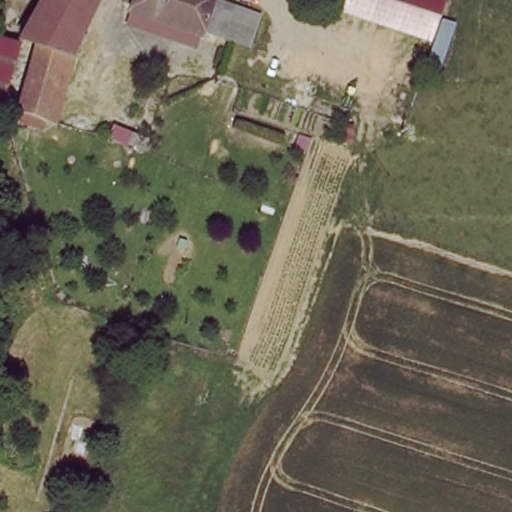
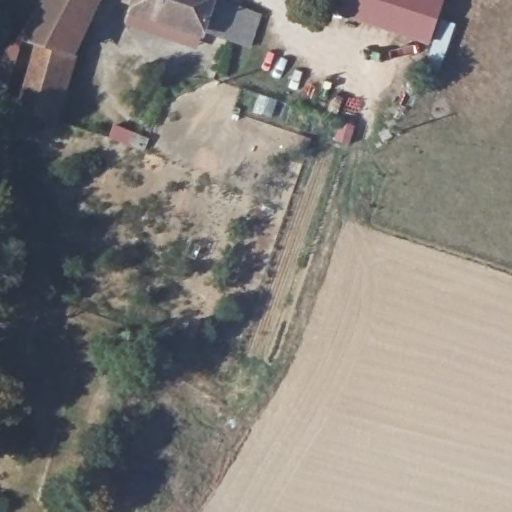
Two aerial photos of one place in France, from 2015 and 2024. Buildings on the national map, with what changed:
unchanged [(33,5),(37,0),(94,0),(47,126),(22,117),(26,104),(13,100),(38,37),(20,30),(33,5)]
unchanged [(258,14),(247,46),(215,36),(215,35),(127,6),(129,0),(215,0),(227,4),(258,14)]
unchanged [(423,39),(337,11),(341,0),(437,0),(423,39)]

